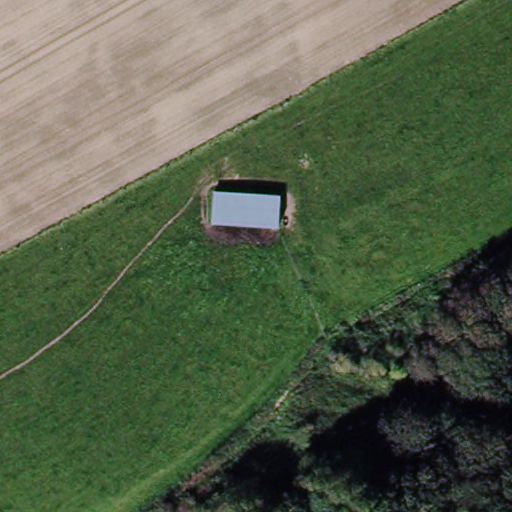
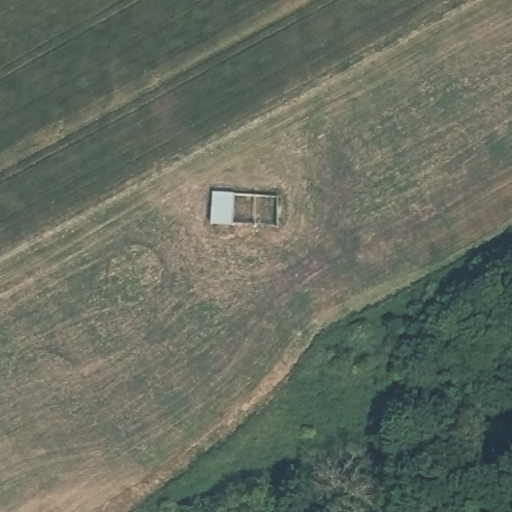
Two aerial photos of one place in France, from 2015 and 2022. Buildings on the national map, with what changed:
unchanged [(275,229),(204,226),(206,187),(277,196),(275,229)]

